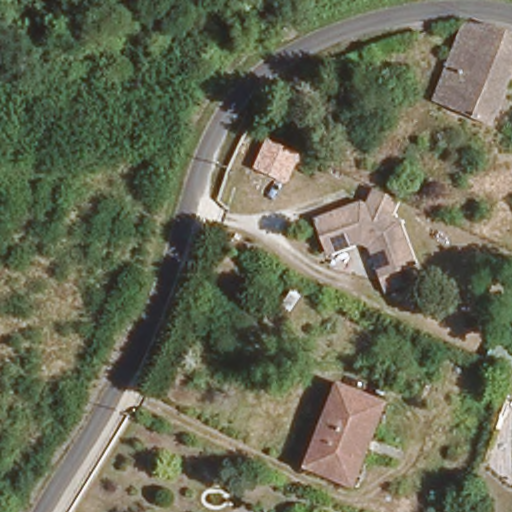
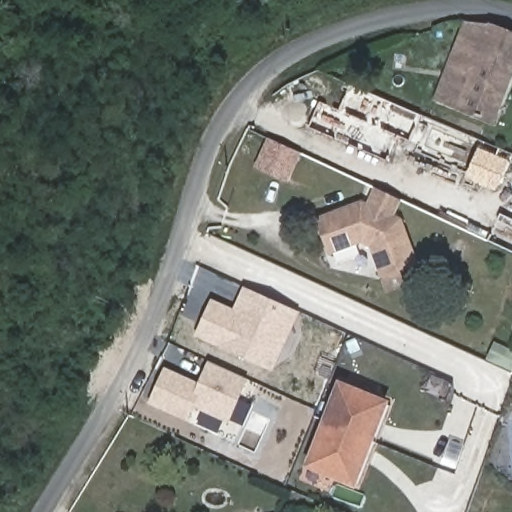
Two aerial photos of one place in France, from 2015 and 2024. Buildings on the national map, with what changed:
unchanged [(512,24),(512,44),(482,32),(475,47),(453,37),(462,15),(472,15),(487,16),(512,24)]
unchanged [(482,32),(512,44),(512,57),(490,115),(480,111),(431,92),(453,37),(475,47),(482,32)]
new [(288,184),(255,169),(267,138),(302,153),(288,184)]
unchanged [(393,207),(386,223),(388,228),(395,226),(412,270),(375,285),(364,255),(355,250),(322,262),(308,226),(341,214),(342,217),(352,213),(356,216),(358,212),(366,195),(393,207)]
new [(211,298),(234,308),(243,286),(300,312),(272,371),(194,337),(211,298)]
new [(249,378),(238,400),(253,406),(242,427),(230,421),(229,423),(224,420),(217,432),(197,423),(205,411),(196,407),(189,421),(149,402),(164,367),(199,383),(208,361),(249,378)]
unchanged [(388,390),(379,412),(390,416),(379,437),(370,433),(341,491),(298,470),(305,454),(344,370),(388,390)]
unchanged [(437,484),(424,512),(390,512),(410,471),(437,484)]

